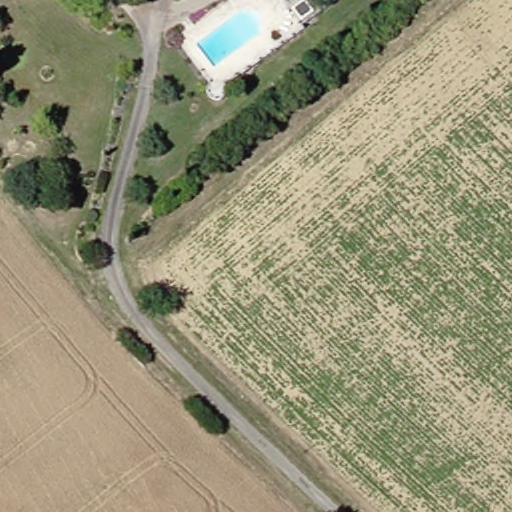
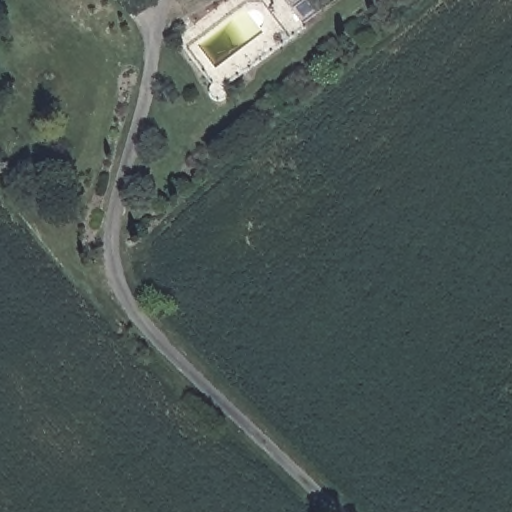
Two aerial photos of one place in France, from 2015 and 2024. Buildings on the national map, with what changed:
[]

